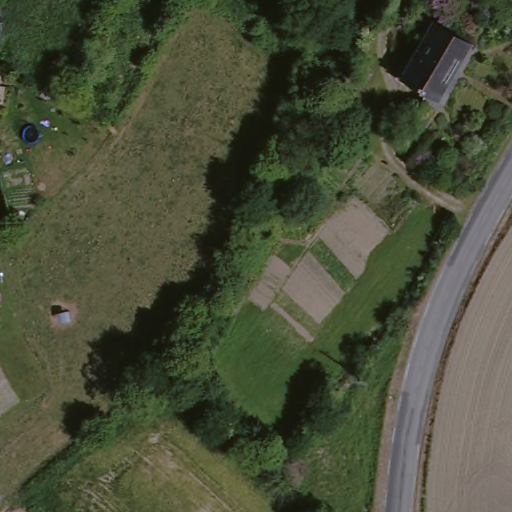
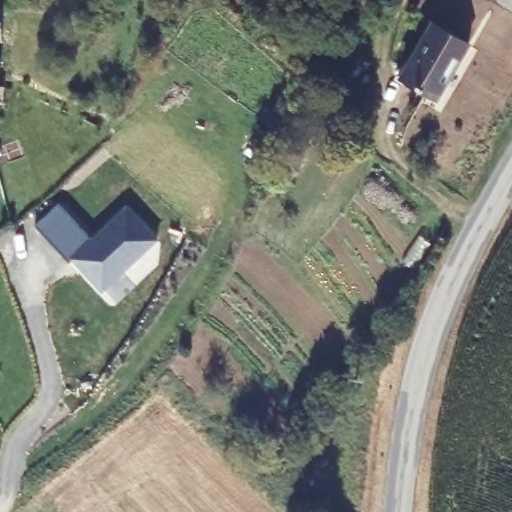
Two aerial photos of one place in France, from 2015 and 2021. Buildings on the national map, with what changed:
unchanged [(0,0),(1,0),(0,18),(0,0)]
unchanged [(476,36),(432,100),(423,93),(428,81),(401,65),(438,11),(476,36)]
unchanged [(0,75),(0,56),(1,55),(0,75)]
new [(160,240),(104,292),(74,261),(70,264),(35,224),(60,204),(90,239),(127,207),(160,240)]

